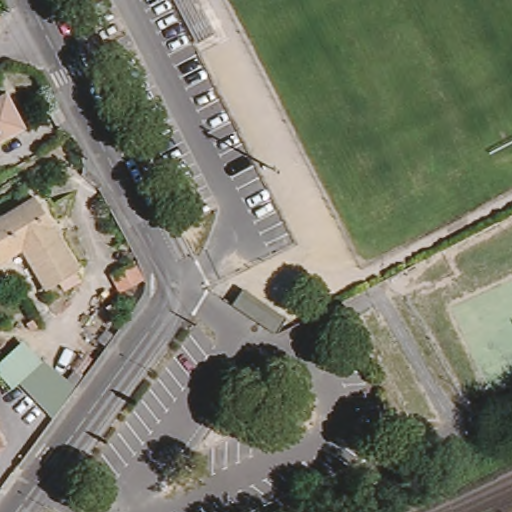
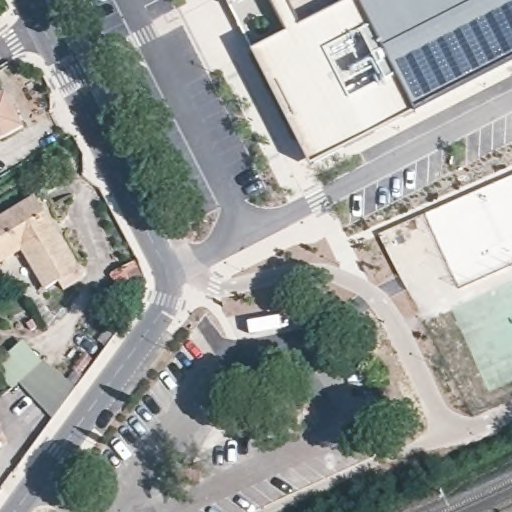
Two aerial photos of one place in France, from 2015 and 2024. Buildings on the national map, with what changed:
demolished [(194,0),(212,35),(192,46),(170,0),(194,0)]
new [(386,130),(384,125),(357,139),(344,115),(298,139),(227,0),(512,0),(512,64),(386,130)]
unchanged [(27,126),(0,140),(0,95),(9,91),(27,126)]
unchanged [(0,220),(39,197),(49,212),(62,234),(83,270),(51,288),(26,248),(1,262),(0,262),(0,220)]
demolished [(207,258),(197,265),(191,255),(200,249),(207,258)]
unchanged [(109,272),(133,258),(143,278),(120,290),(109,272)]
unchanged [(286,317),(275,333),(230,304),(241,287),(286,317)]
new [(12,388),(0,375),(0,361),(23,341),(42,361),(18,383),(12,388)]
unchanged [(18,383),(43,360),(75,389),(51,419),(18,383)]
unchanged [(0,455),(0,445),(4,452),(0,455)]

